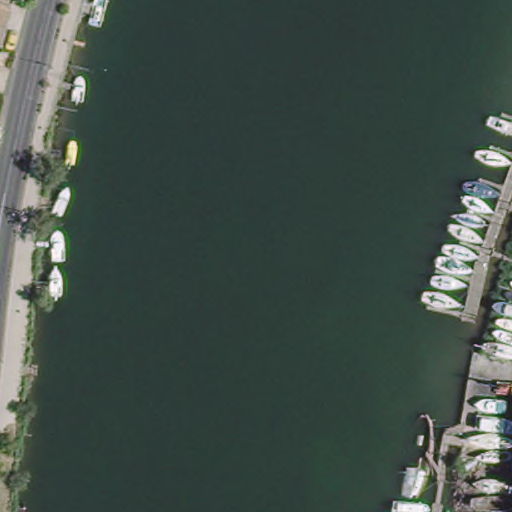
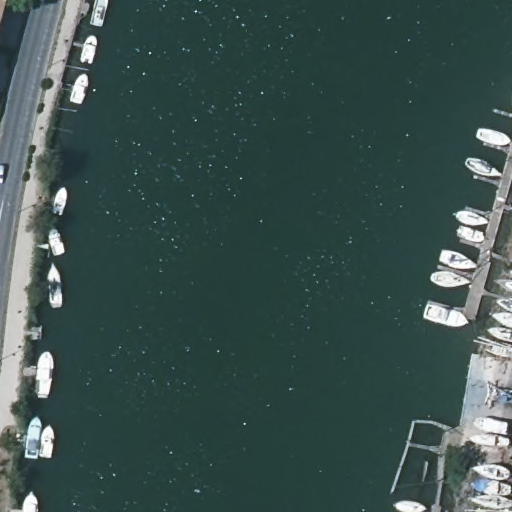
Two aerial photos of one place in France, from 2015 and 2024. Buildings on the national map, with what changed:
unchanged [(0,0),(2,0),(10,2),(0,37),(0,0)]
unchanged [(2,0),(10,0),(10,2),(2,0)]

